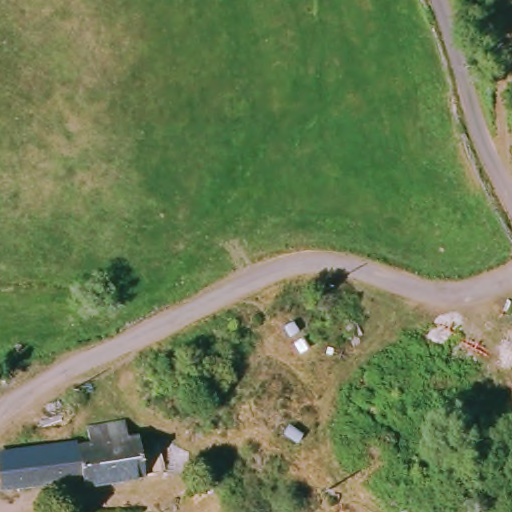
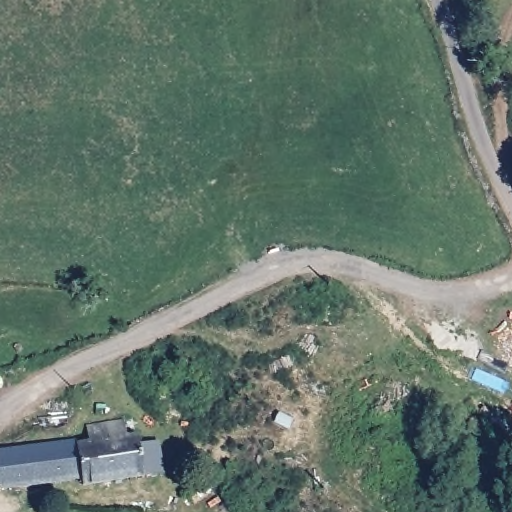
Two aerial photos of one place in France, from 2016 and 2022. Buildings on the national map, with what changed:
unchanged [(86,446),(86,429),(123,422),(125,436),(135,436),(138,447),(155,444),(160,475),(81,488),(80,481),(0,490),(0,454),(86,446)]

